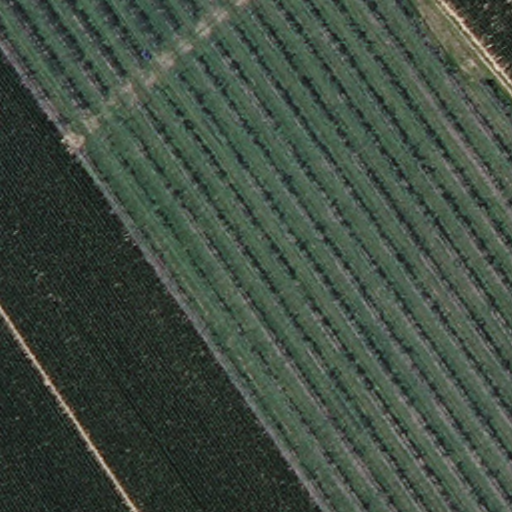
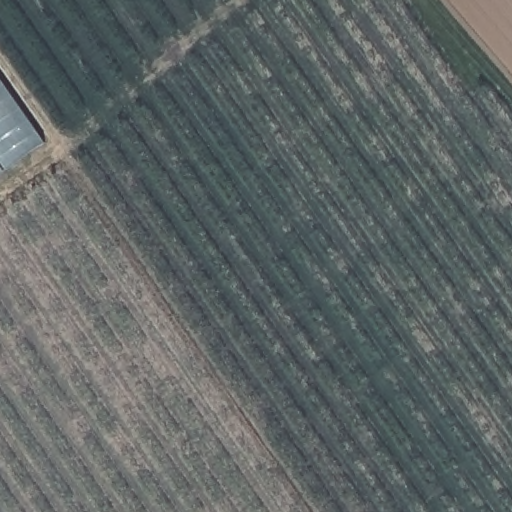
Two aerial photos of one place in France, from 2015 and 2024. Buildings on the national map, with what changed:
new [(0,174),(0,76),(46,142),(0,174)]

